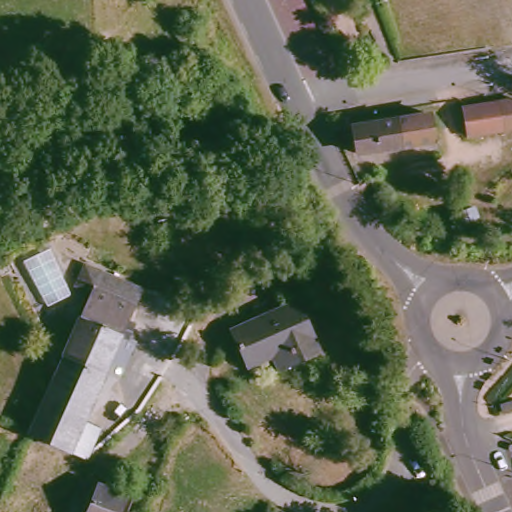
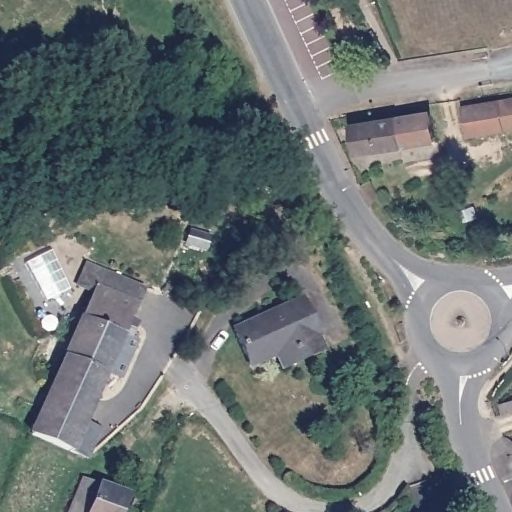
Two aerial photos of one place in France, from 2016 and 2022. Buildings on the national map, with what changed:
unchanged [(317,0),(328,0),(318,3),(317,0)]
unchanged [(474,137),(469,109),(512,101),(512,130),(474,137)]
unchanged [(356,150),(354,124),(430,111),(434,138),(356,150)]
unchanged [(100,285),(85,279),(92,259),(108,265),(152,284),(136,322),(141,324),(134,339),(142,343),(127,380),(113,374),(92,424),(105,430),(93,459),(78,454),(33,436),(100,285)]
unchanged [(307,306),(317,345),(315,349),(317,364),(295,368),(290,352),(245,361),(238,324),(264,318),(268,320),(283,317),(282,311),(307,306)]
unchanged [(510,398),(511,404),(497,407),(497,401),(510,398)]
unchanged [(123,486),(130,482),(134,486),(124,512),(63,512),(79,470),(123,486)]

